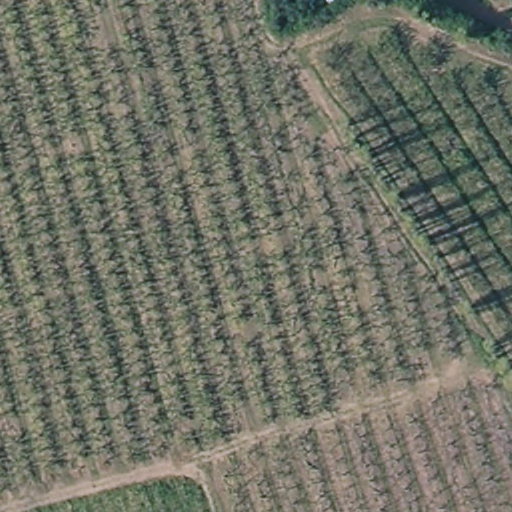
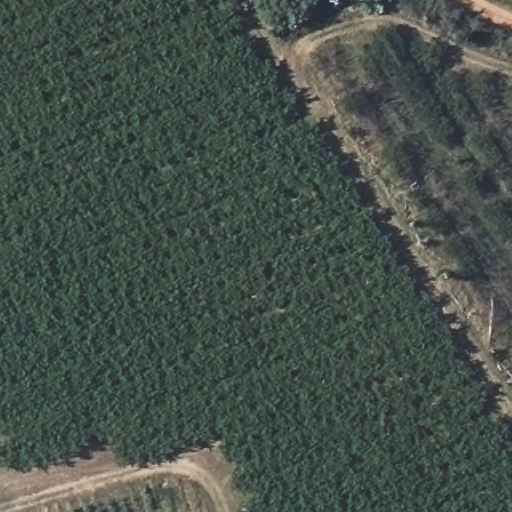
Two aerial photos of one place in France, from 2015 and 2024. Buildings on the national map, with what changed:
unchanged [(340,6),(325,11),(321,0),(338,0),(340,6)]

